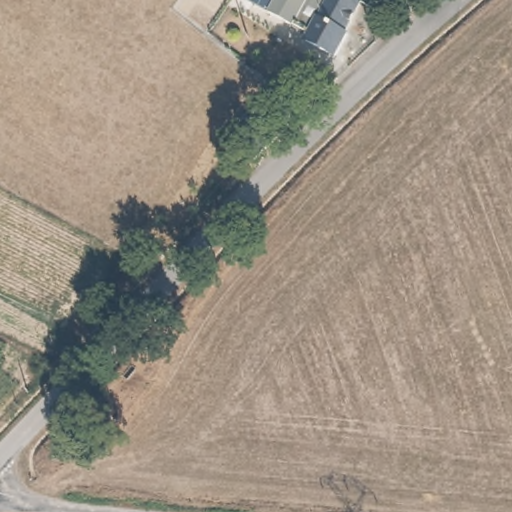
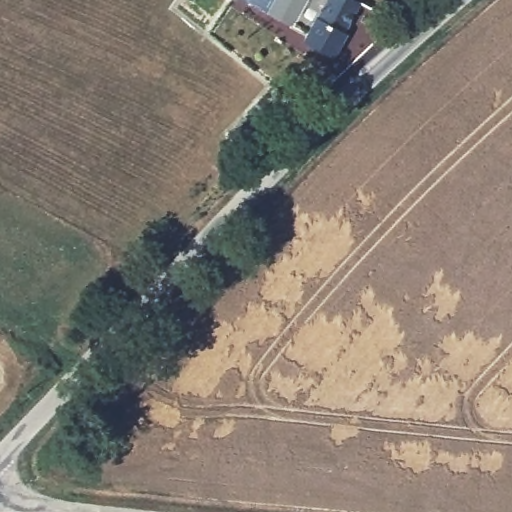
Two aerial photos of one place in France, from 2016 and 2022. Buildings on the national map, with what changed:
unchanged [(280,0),(362,0),(346,28),(351,31),(340,51),(310,36),(315,27),(276,7),(280,0)]
unchanged [(272,129),(291,109),(305,121),(285,140),(272,129)]

